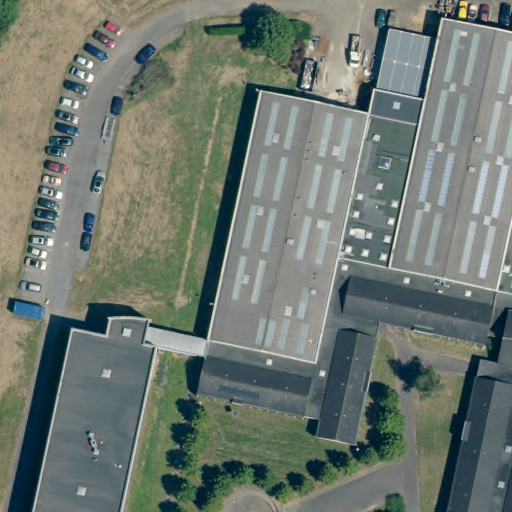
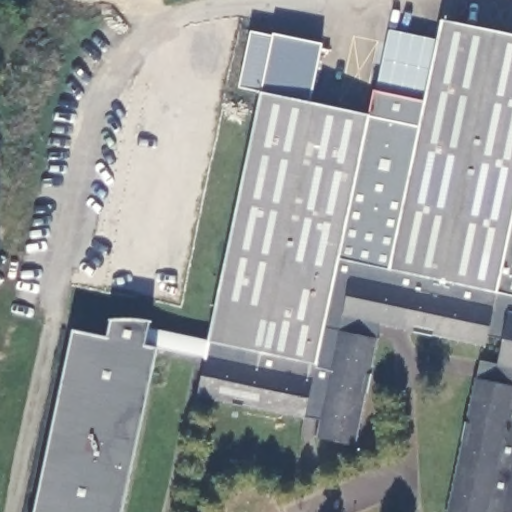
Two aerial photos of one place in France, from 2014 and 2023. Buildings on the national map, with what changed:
unchanged [(391,20),(420,26),(418,36),(433,40),(414,131),(368,121),(391,20)]
unchanged [(472,383),(476,366),(487,368),(492,369),(497,344),(482,341),(480,351),(375,328),(372,344),(348,451),(313,443),(316,426),(193,399),(201,363),(152,353),(118,512),(30,512),(67,335),(102,343),(106,326),(116,324),(133,324),(145,326),(144,334),(204,348),(257,98),(414,131),(437,25),(512,41),(512,512),(445,512),(472,383)]
new [(237,92),(251,31),(273,36),(273,34),(322,44),(307,109),(257,98),(237,92)]

